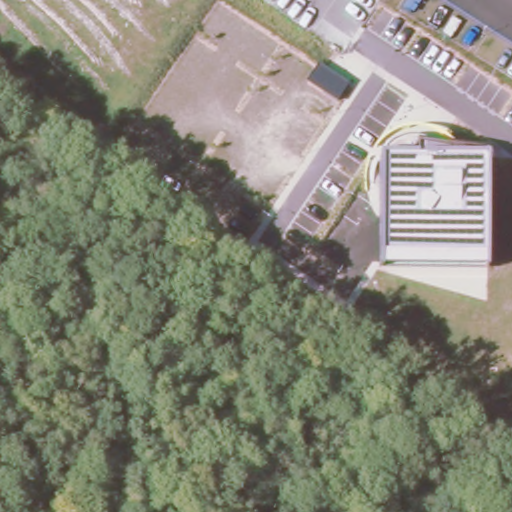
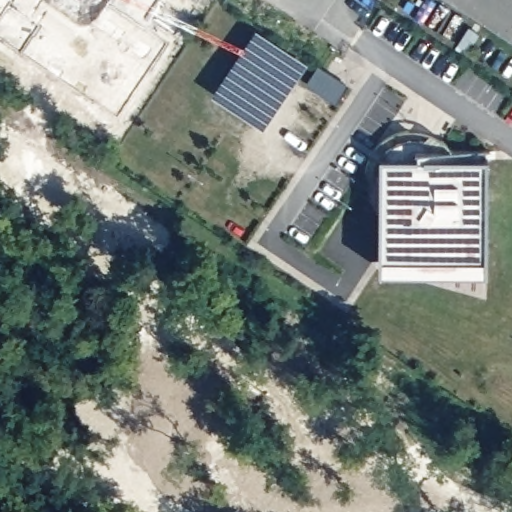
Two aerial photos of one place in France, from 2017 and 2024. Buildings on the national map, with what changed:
new [(80,0),(86,0),(84,3),(80,0)]
new [(307,63),(263,126),(212,94),(255,28),(307,63)]
new [(348,87),(336,105),(306,85),(318,67),(348,87)]
unchanged [(379,156),(387,157),(386,151),(391,146),(404,140),(415,139),(424,143),(424,150),(488,158),(487,274),(378,273),(379,156)]

